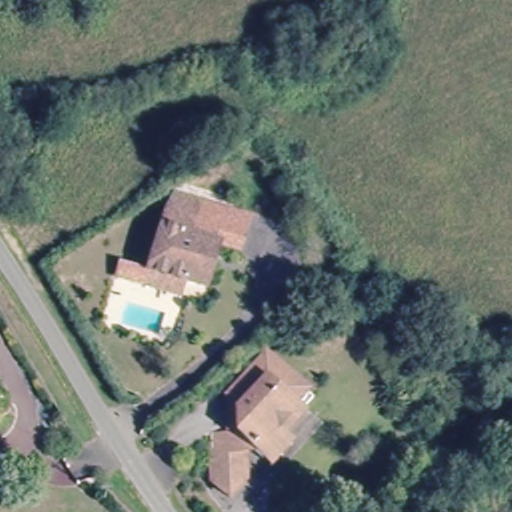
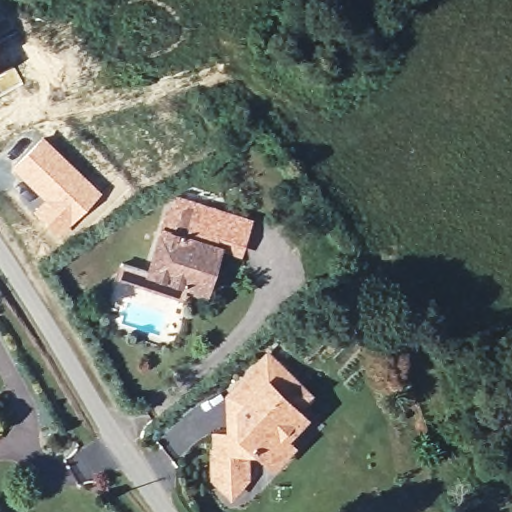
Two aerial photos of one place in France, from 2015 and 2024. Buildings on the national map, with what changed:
new [(102,189),(59,236),(32,210),(46,198),(11,166),(42,134),(102,189)]
unchanged [(172,194),(251,215),(240,254),(212,248),(214,243),(209,241),(215,224),(167,206),(172,194)]
unchanged [(140,279),(113,269),(118,255),(145,265),(167,206),(215,224),(209,241),(214,243),(212,248),(198,285),(180,278),(174,292),(140,279)]
unchanged [(258,442),(257,443),(254,447),(233,447),(230,479),(211,493),(194,473),(202,423),(227,423),(215,412),(222,391),(236,377),(262,347),(292,374),(303,383),(287,400),(293,406),(276,425),(286,435),(269,453),(258,442)]

